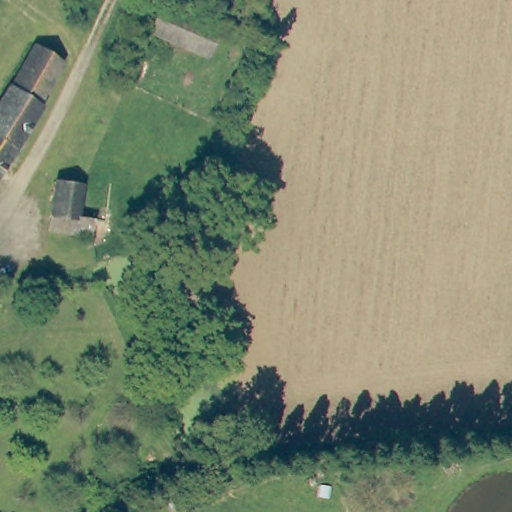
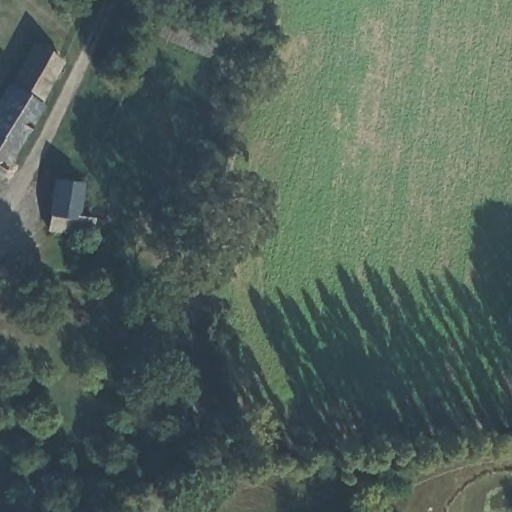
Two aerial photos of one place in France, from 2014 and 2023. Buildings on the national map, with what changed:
unchanged [(212,30),(200,58),(141,29),(153,3),(212,30)]
unchanged [(41,104),(46,108),(0,176),(0,109),(37,48),(62,63),(41,104)]
unchanged [(79,173),(75,205),(90,208),(87,224),(45,218),(52,169),(79,173)]
unchanged [(183,512),(168,512),(157,489),(200,466),(218,493),(183,512)]

